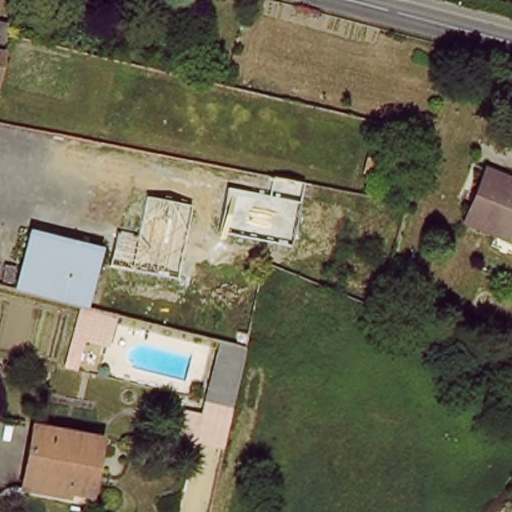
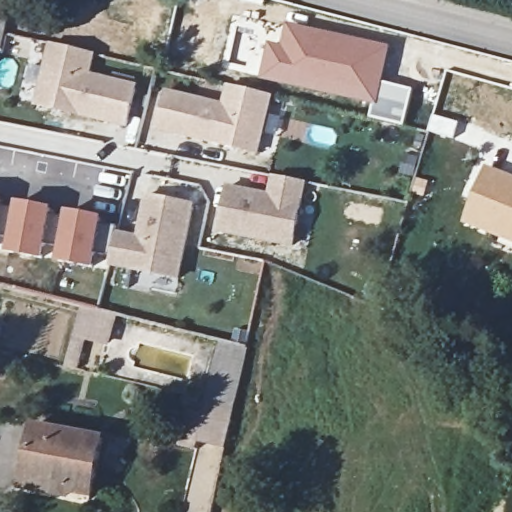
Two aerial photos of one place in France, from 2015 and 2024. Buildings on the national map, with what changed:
new [(269,41),(281,44),(287,21),(390,44),(382,81),(376,106),(371,105),(300,89),(262,79),(269,41)]
unchanged [(3,41),(0,49),(0,26),(4,26),(3,41)]
new [(97,54),(93,74),(139,85),(128,129),(35,107),(49,44),(97,54)]
new [(371,105),(376,106),(382,81),(413,89),(404,127),(367,118),(371,105)]
new [(222,104),(226,85),(273,95),(259,155),(156,131),(165,90),(222,104)]
new [(431,114),(459,121),(453,140),(426,132),(431,114)]
new [(415,177),(396,173),(402,150),(420,154),(415,177)]
unchanged [(512,240),(467,222),(485,166),(512,175),(512,240)]
new [(268,194),(272,176),(307,183),(294,250),(217,234),(225,186),(268,194)]
new [(425,196),(410,192),(415,177),(429,180),(425,196)]
new [(196,205),(181,281),(110,267),(117,232),(137,236),(145,196),(196,205)]
new [(3,197),(0,215),(0,197),(3,197)]
new [(14,201),(52,209),(43,260),(3,251),(14,201)]
new [(62,210),(103,218),(92,269),(52,261),(62,210)]
demolished [(104,245),(92,306),(18,289),(32,229),(104,245)]
new [(81,305),(118,313),(108,346),(74,336),(81,305)]
unchanged [(210,397),(222,341),(252,348),(240,407),(210,397)]
unchanged [(102,440),(92,499),(72,495),(75,480),(29,471),(37,428),(102,440)]

